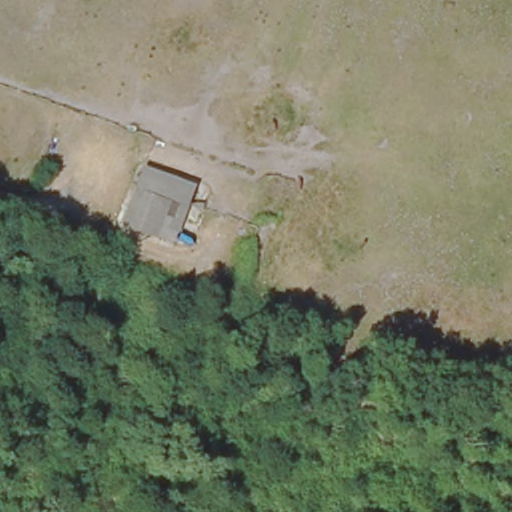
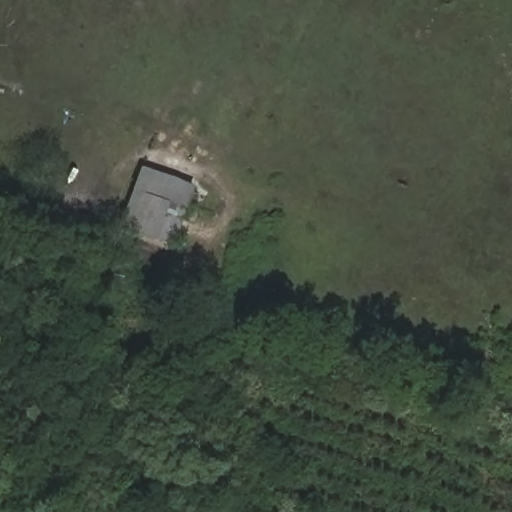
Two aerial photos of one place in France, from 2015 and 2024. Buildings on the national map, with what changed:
unchanged [(125,216),(144,159),(191,176),(172,232),(125,216)]

